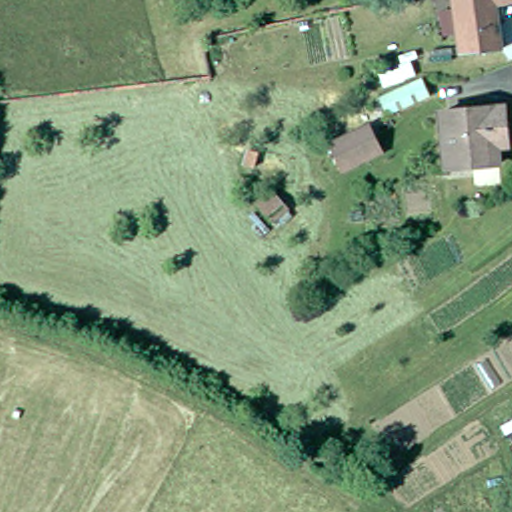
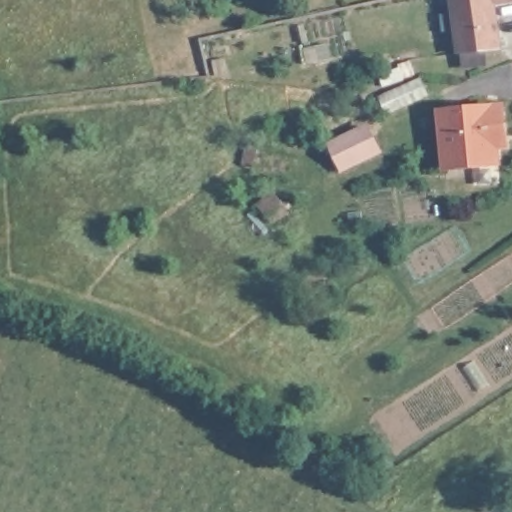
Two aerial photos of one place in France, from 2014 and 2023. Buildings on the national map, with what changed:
unchanged [(512,2),(498,5),(504,50),(464,56),(456,0),(512,0),(512,2)]
unchanged [(215,87),(228,85),(229,88),(230,92),(215,94),(215,88),(215,87)]
unchanged [(425,105),(382,119),(376,101),(419,88),(425,105)]
unchanged [(449,117),(510,110),(512,131),(512,147),(504,148),(506,165),(455,171),(449,117)]
unchanged [(367,122),(379,147),(340,168),(326,143),(367,122)]

